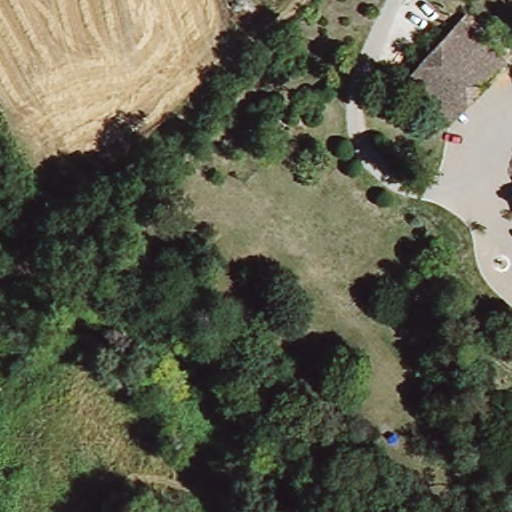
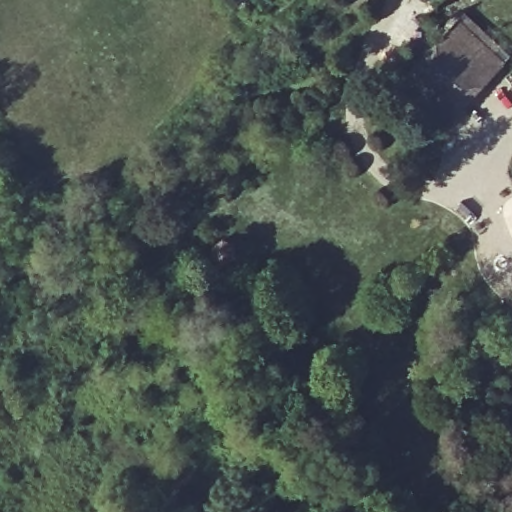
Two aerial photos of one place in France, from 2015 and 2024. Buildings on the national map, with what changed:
unchanged [(403,81),(460,13),(508,55),(452,123),(403,81)]

